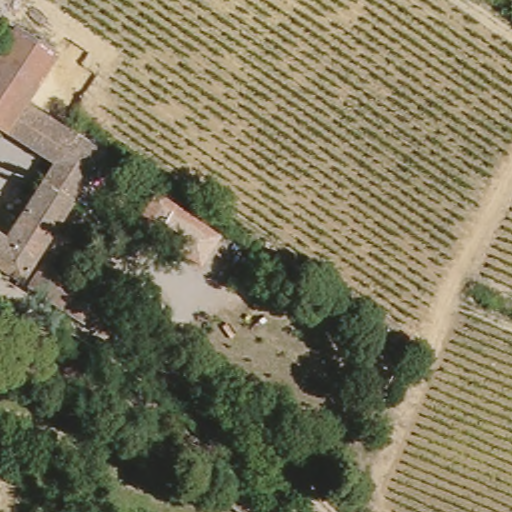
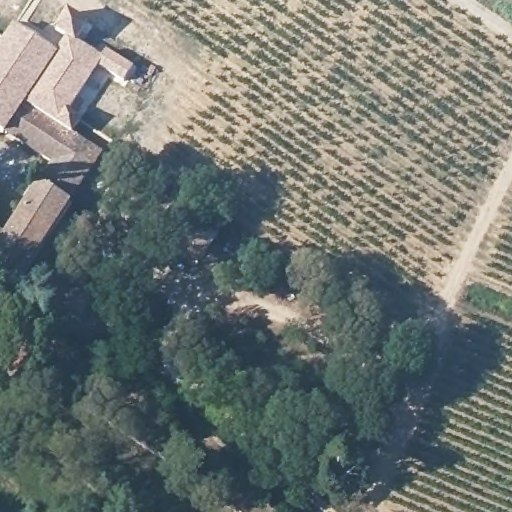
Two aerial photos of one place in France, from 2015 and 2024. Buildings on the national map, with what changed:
new [(64,36),(56,31),(68,13),(87,25),(78,42),(104,57),(107,52),(133,67),(123,85),(99,70),(58,129),(20,104),(45,65),(52,55),(64,36)]
unchanged [(3,42),(13,30),(52,55),(20,104),(0,133),(0,47),(3,42)]
unchanged [(20,104),(70,136),(48,169),(0,135),(0,133),(20,104)]
unchanged [(38,183),(48,169),(70,136),(94,152),(63,200),(38,183)]
unchanged [(38,183),(63,200),(27,256),(12,277),(0,269),(0,239),(38,183)]
unchanged [(72,319),(21,283),(35,261),(87,296),(72,319)]

